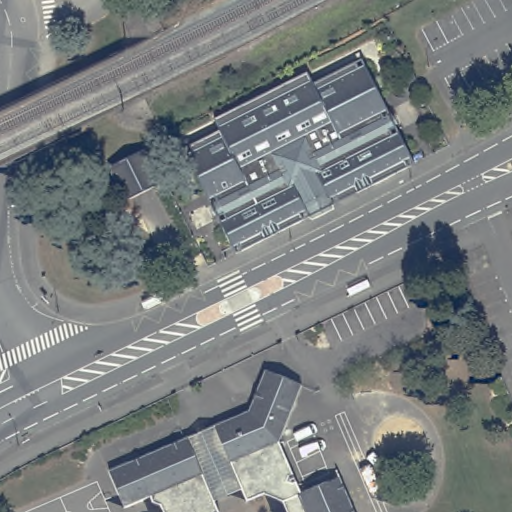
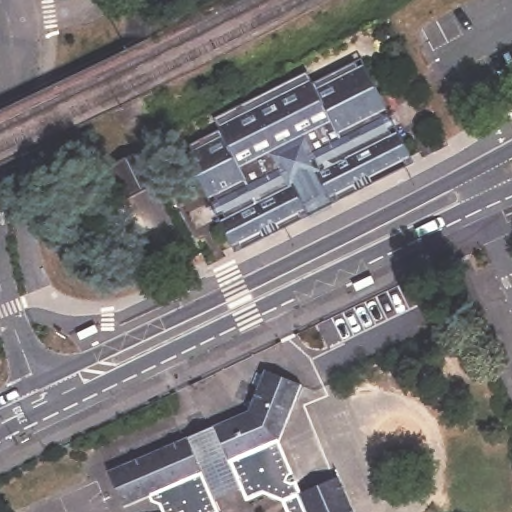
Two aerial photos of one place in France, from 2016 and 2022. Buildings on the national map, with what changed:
unchanged [(239,252),(223,219),(235,212),(230,202),(217,209),(192,159),(189,151),(197,147),(226,132),(221,124),(220,120),(313,73),(318,84),(357,63),(366,59),(369,67),(396,117),(382,124),(387,133),(400,127),(417,159),(420,166),(414,170),(346,204),(338,209),(335,202),(332,195),(310,206),(314,212),(318,219),(310,222),(251,254),(242,257),(239,252)]
unchanged [(406,74),(401,64),(409,60),(413,69),(406,74)]
unchanged [(128,204),(124,195),(111,170),(148,150),(153,160),(162,175),(164,181),(166,184),(128,204)]
unchanged [(157,499),(155,495),(128,506),(113,470),(253,410),(270,368),(308,383),(285,440),(307,492),(345,477),(360,512),(284,512),(281,504),(261,496),(222,512),(171,512),(167,502),(157,499)]

